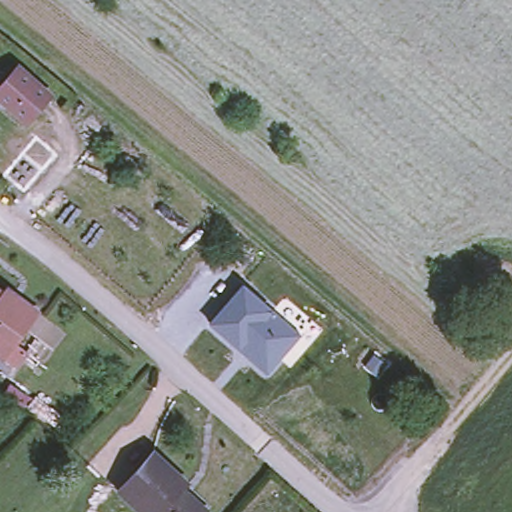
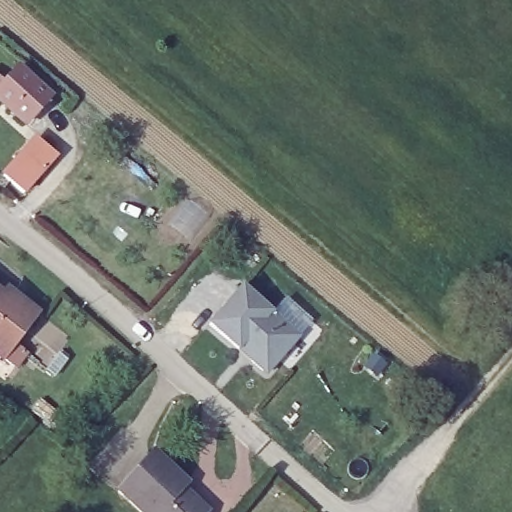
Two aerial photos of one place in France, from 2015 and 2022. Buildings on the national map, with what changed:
unchanged [(46,98),(23,125),(0,106),(0,86),(13,70),(46,98)]
new [(58,156),(24,194),(1,173),(34,135),(58,156)]
unchanged [(241,284),(303,336),(268,377),(207,323),(241,284)]
unchanged [(0,356),(0,291),(4,294),(8,289),(19,299),(38,312),(11,347),(3,358),(0,356)]
unchanged [(119,486),(153,449),(186,479),(181,484),(206,508),(202,512),(148,512),(119,486)]

